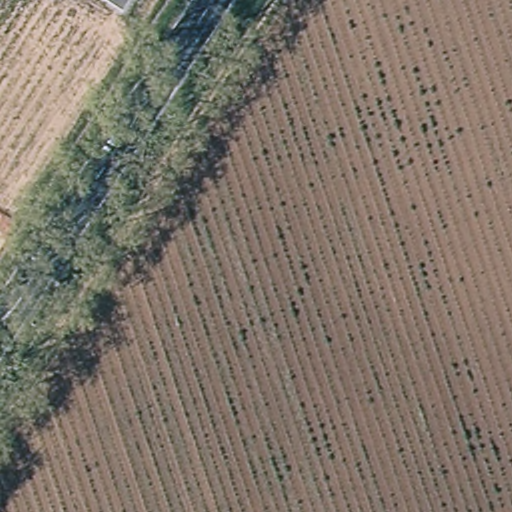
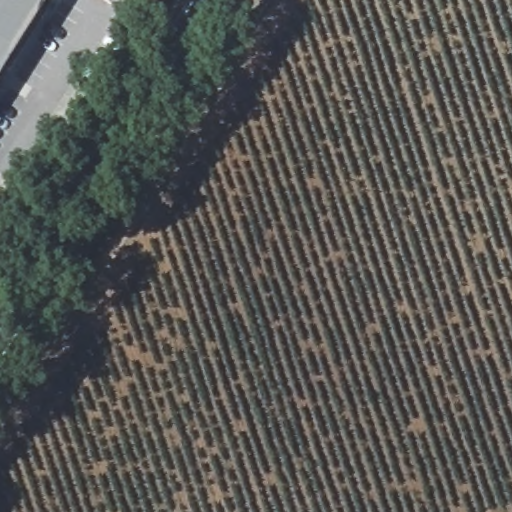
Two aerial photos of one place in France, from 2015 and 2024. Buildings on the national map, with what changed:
new [(0,86),(0,0),(53,0),(0,86)]

